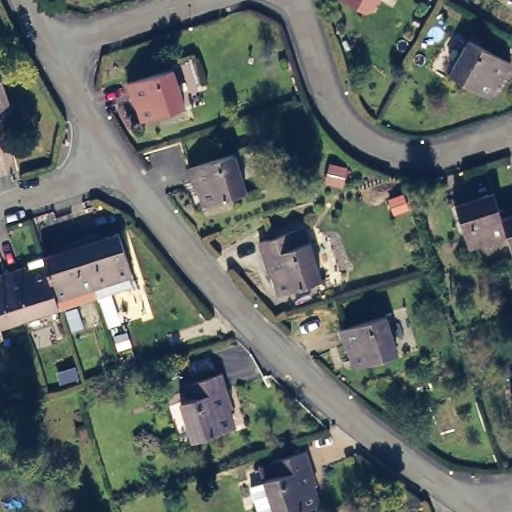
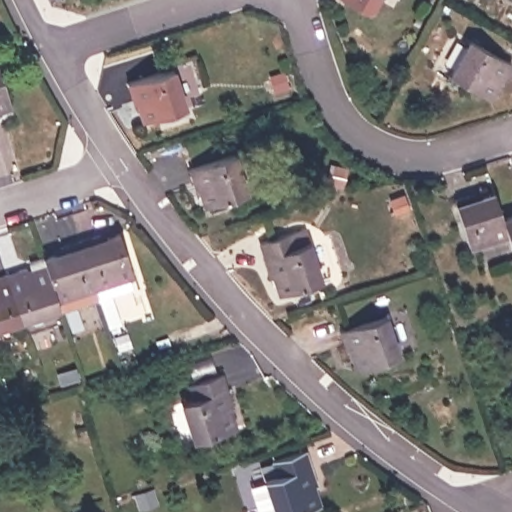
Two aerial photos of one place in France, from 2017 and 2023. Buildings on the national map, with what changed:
unchanged [(512,58),(502,75),(498,73),(488,91),(450,69),(470,33),(512,58)]
unchanged [(133,97),(127,77),(172,62),(185,102),(143,115),(137,96),(133,97)]
unchanged [(10,99),(0,102),(0,67),(10,99)]
unchanged [(200,182),(193,163),(239,149),(252,186),(210,200),(205,186),(201,187),(200,182)]
unchanged [(506,234),(468,247),(453,200),(472,193),(477,192),(478,196),(492,192),(500,217),(506,234)]
unchanged [(403,196),(408,209),(395,214),(390,201),(403,196)]
unchanged [(500,217),(512,214),(512,253),(506,234),(500,217)]
unchanged [(274,269),(270,271),(260,237),(292,226),(305,223),(310,237),(322,276),(280,289),(274,269)]
unchanged [(132,276),(137,288),(105,298),(100,286),(100,287),(86,246),(85,242),(105,235),(105,240),(125,234),(137,274),(132,276)]
unchanged [(99,287),(102,299),(65,311),(63,307),(62,299),(50,265),(48,258),(67,252),(65,248),(85,242),(86,246),(100,287),(99,287)]
unchanged [(30,267),(35,265),(37,270),(50,265),(62,299),(63,307),(25,319),(10,273),(30,267)]
unchanged [(10,273),(25,319),(0,327),(0,276),(10,273)]
unchanged [(385,310),(397,349),(355,362),(349,342),(345,344),(338,325),(385,310)]
unchanged [(237,406),(232,407),(239,427),(197,440),(185,401),(196,397),(192,383),(227,372),(237,406)]
unchanged [(512,388),(512,393),(510,388),(512,388)]
unchanged [(266,512),(255,476),(269,472),(268,470),(267,470),(263,457),(277,453),(276,452),(310,441),(321,474),(316,475),(322,495),(281,508),(280,507),(267,512),(266,512)]

